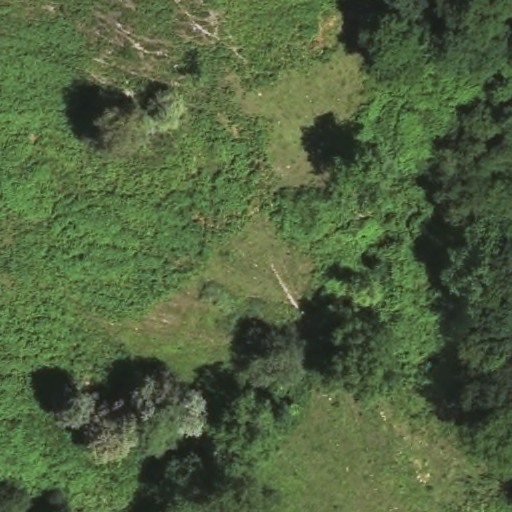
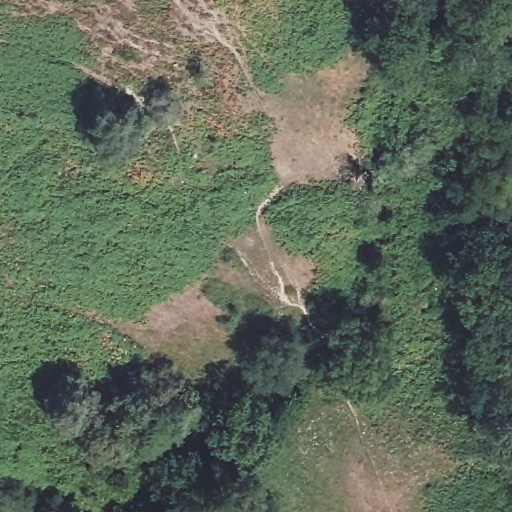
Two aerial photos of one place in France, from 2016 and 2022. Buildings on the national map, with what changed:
[]

